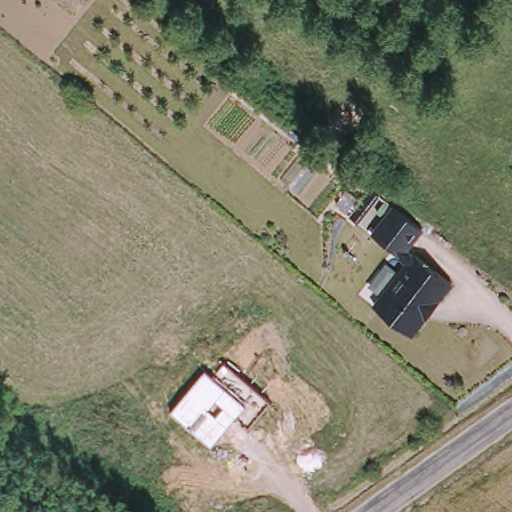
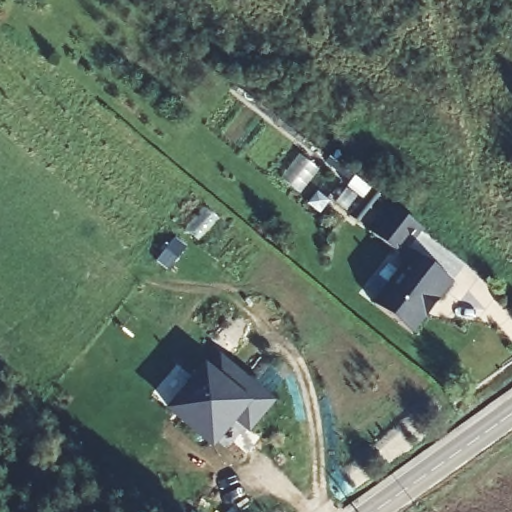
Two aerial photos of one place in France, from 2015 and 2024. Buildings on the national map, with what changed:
unchanged [(406,260),(372,233),(394,203),(426,231),(410,254),(452,284),(414,334),(374,305),(406,260)]
new [(211,375),(222,362),(226,365),(273,404),(251,431),(238,420),(235,423),(234,421),(226,430),(227,432),(214,448),(172,413),(207,372),(211,375)]

